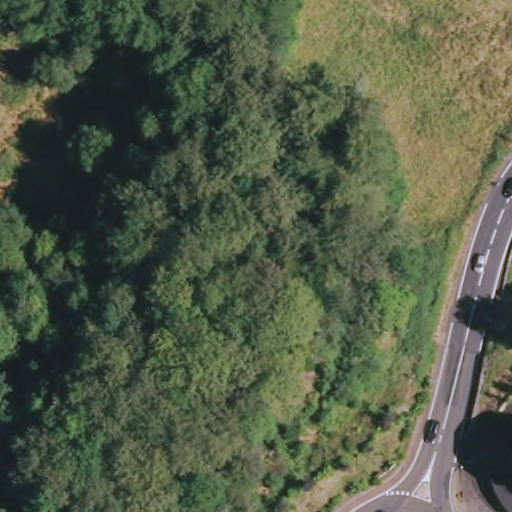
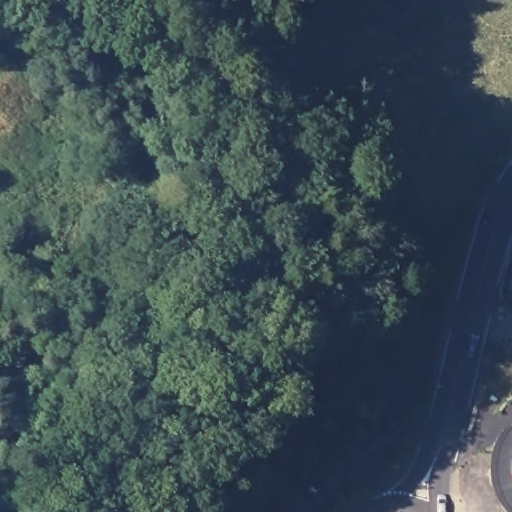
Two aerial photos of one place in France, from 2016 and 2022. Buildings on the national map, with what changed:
unchanged [(508,480),(511,452),(512,450),(512,493),(508,480)]

